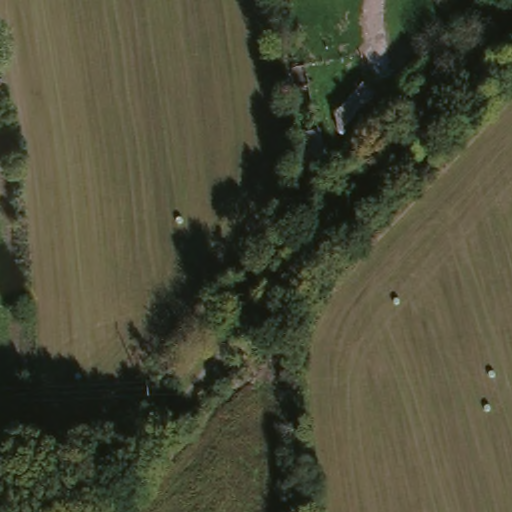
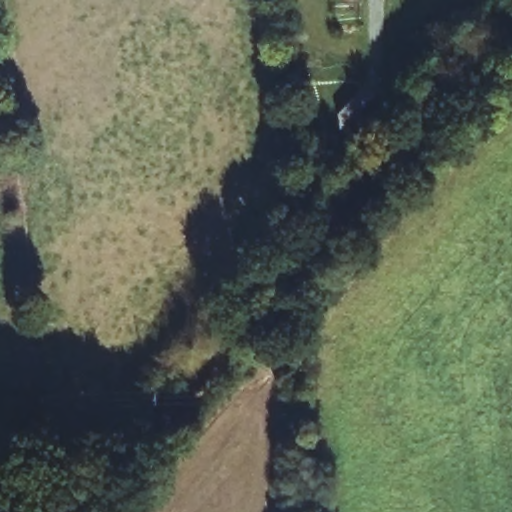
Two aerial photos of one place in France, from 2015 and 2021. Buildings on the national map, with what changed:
unchanged [(364,85),(374,95),(341,133),(338,115),(364,85)]
unchanged [(323,155),(300,159),(300,151),(309,150),(307,135),(320,134),(323,155)]

